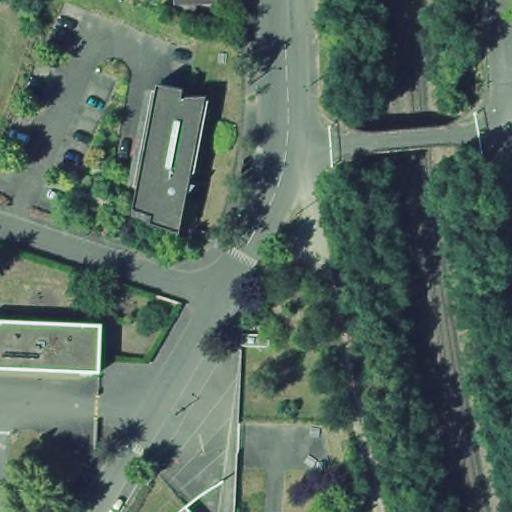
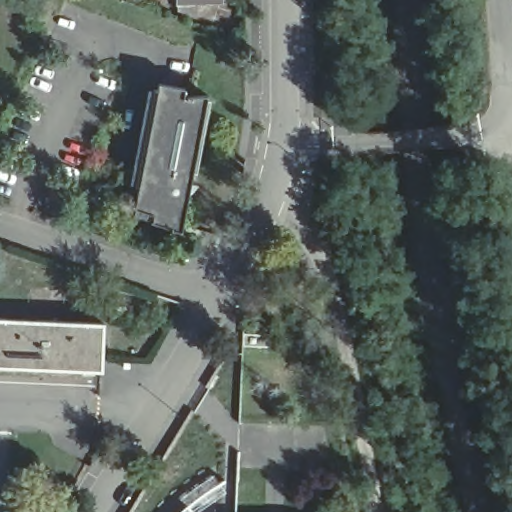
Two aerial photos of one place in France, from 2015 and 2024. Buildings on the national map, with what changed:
unchanged [(178,0),(223,0),(223,6),(178,10),(178,0)]
unchanged [(171,232),(151,226),(154,219),(123,208),(133,161),(134,161),(138,146),(148,85),(168,89),(166,96),(176,98),(176,96),(197,95),(185,161),(181,183),(186,184),(173,225),(171,232)]
unchanged [(94,326),(92,373),(0,368),(0,321),(94,326)]
unchanged [(254,329),(254,327),(259,327),(268,330),(273,335),(269,335),(269,347),(243,346),(243,329),(254,329)]
unchanged [(190,509),(193,512),(181,512),(183,509),(186,506),(188,505),(190,509)]

